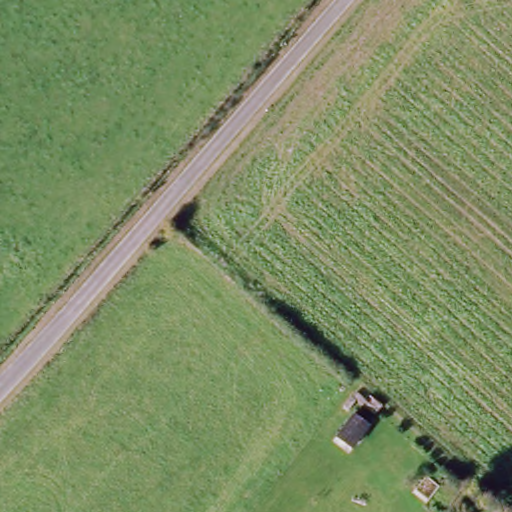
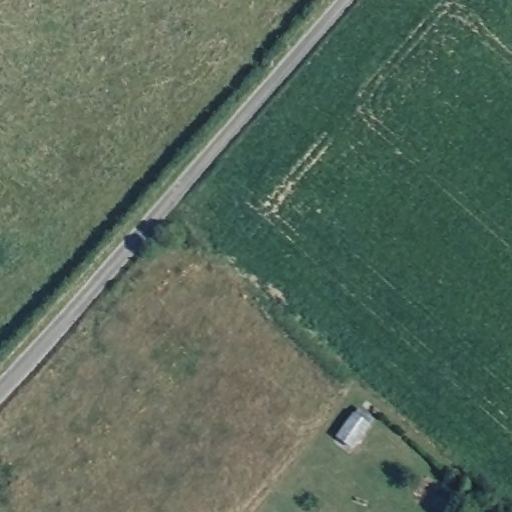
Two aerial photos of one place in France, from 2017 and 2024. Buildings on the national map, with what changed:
unchanged [(369,428),(351,450),(336,440),(355,418),(369,428)]

